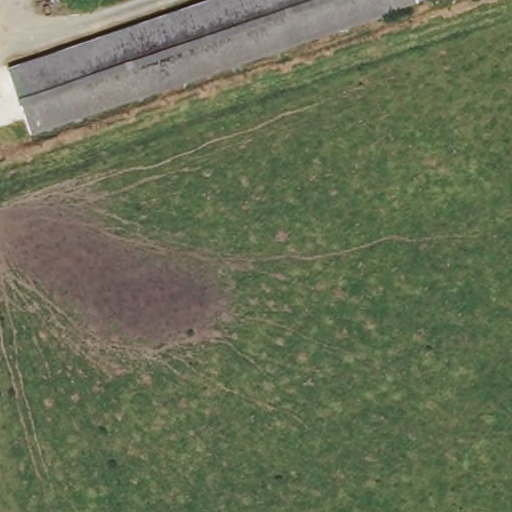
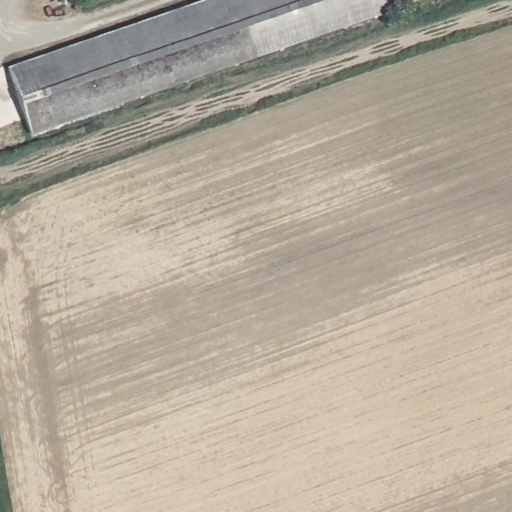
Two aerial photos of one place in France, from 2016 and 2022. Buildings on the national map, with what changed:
unchanged [(28,134),(6,68),(207,0),(418,0),(417,0),(28,134)]

